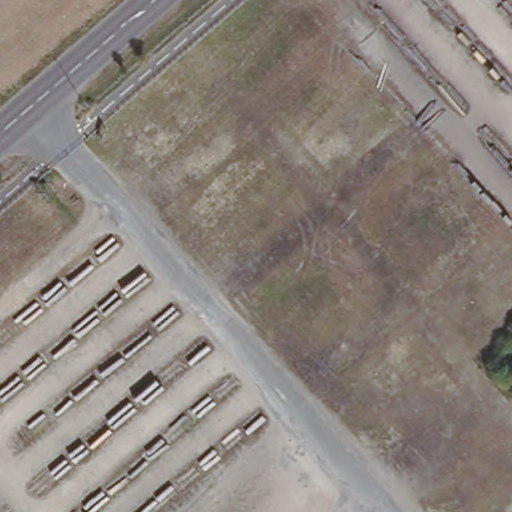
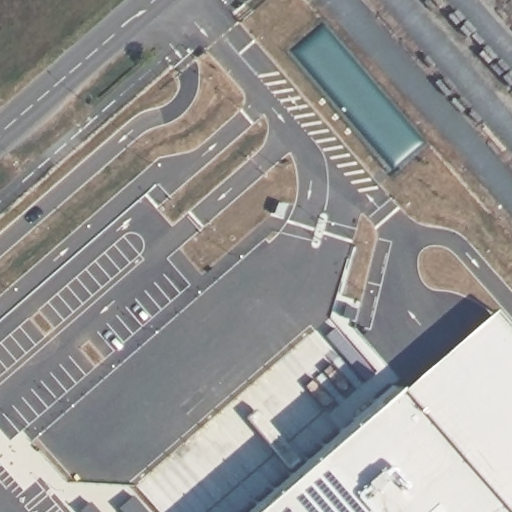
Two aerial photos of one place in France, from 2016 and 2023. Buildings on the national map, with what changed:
new [(491,308),(512,332),(512,512),(255,512),(400,389),(491,308)]

